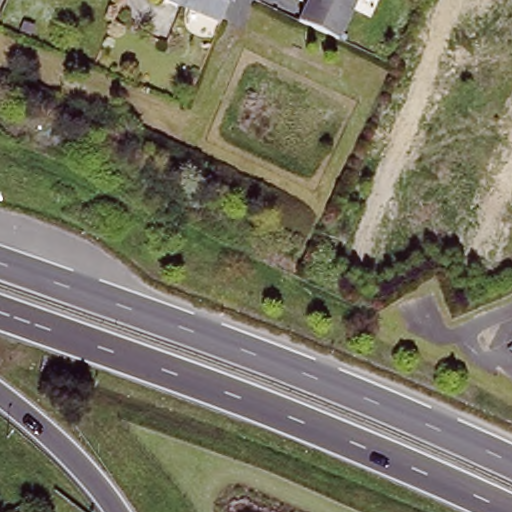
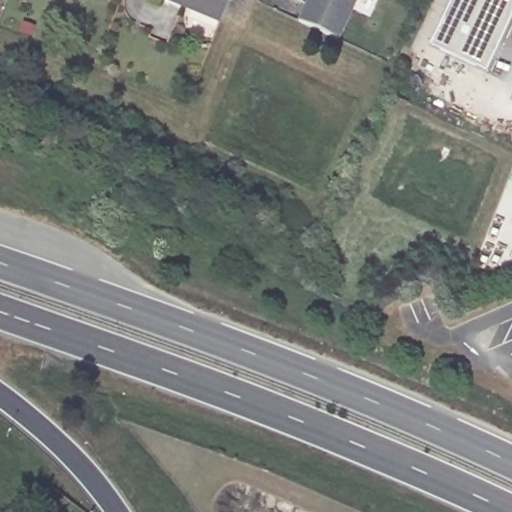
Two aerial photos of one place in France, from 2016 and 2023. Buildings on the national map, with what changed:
unchanged [(221,18),(178,0),(228,0),(221,18)]
unchanged [(301,20),(311,0),(357,0),(339,39),(301,20)]
new [(512,19),(486,74),(430,47),(452,0),(512,0),(512,19)]

